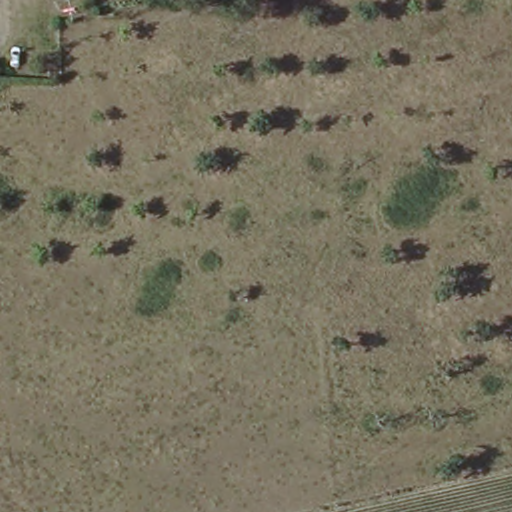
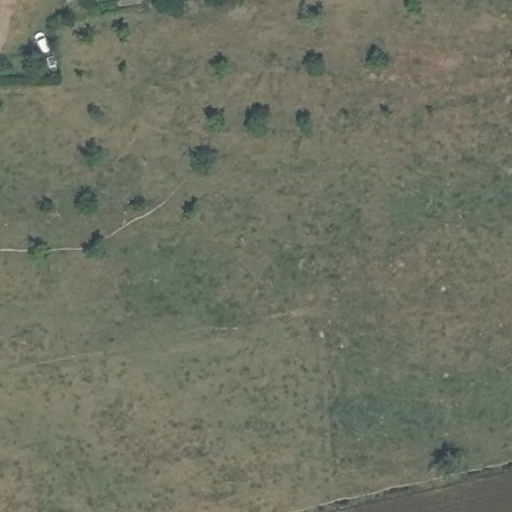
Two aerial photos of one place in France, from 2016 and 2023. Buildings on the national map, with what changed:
[]

